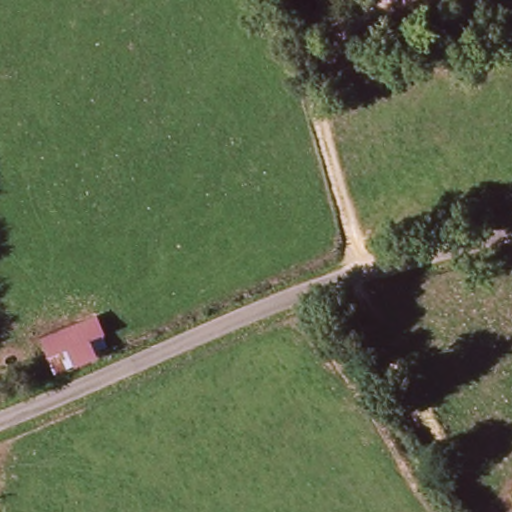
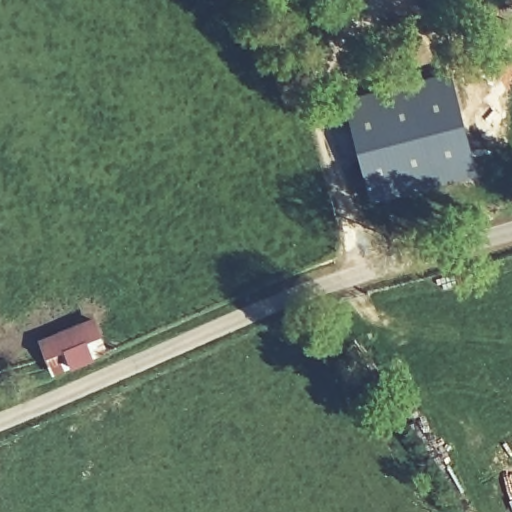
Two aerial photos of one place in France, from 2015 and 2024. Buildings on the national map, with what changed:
new [(451,73),(474,156),(372,183),(350,101),(451,73)]
new [(474,156),(479,174),(377,201),(372,183),(474,156)]
unchanged [(95,318),(103,337),(109,335),(113,348),(95,359),(73,367),(54,375),(46,358),(39,342),(95,318)]

